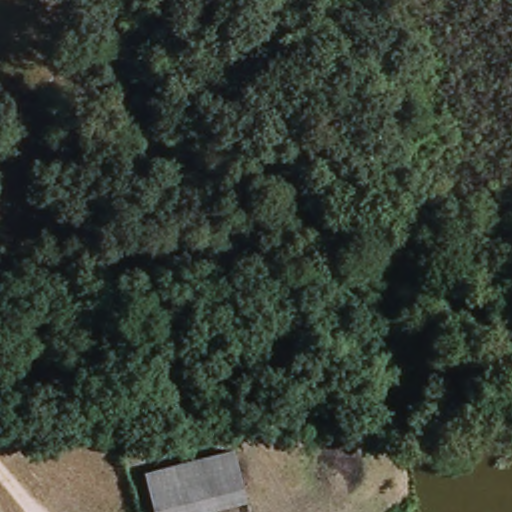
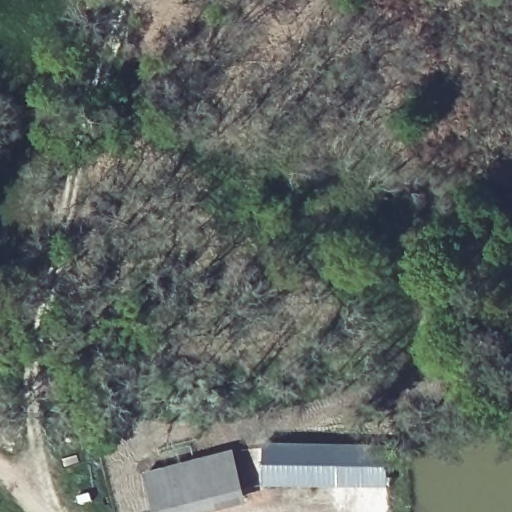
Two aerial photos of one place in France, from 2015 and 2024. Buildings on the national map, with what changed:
new [(265,440),(394,443),(390,487),(263,486),(265,440)]
unchanged [(149,512),(141,474),(229,454),(241,506),(218,512),(149,512)]

